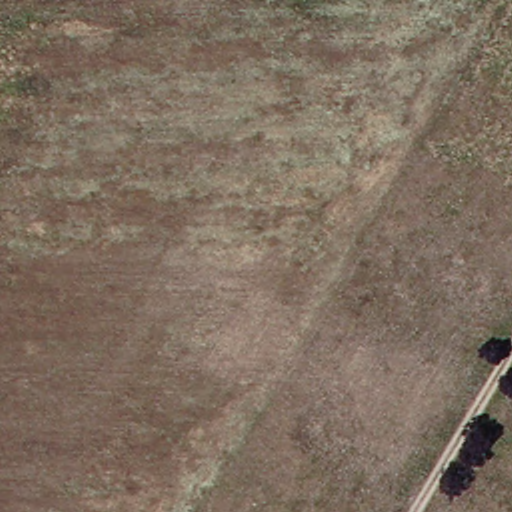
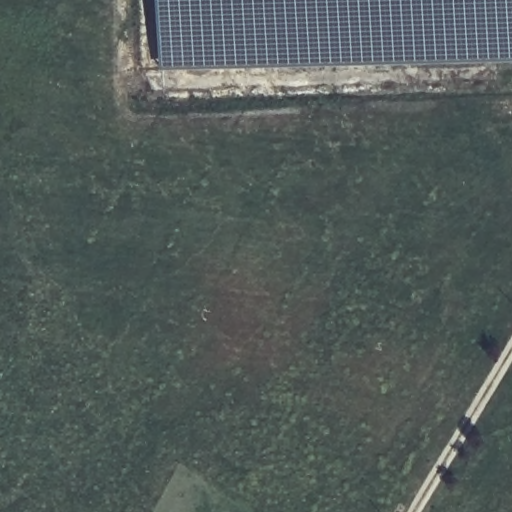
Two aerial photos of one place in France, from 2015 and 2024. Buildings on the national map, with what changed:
new [(158,0),(512,0),(512,61),(160,70),(158,0)]

